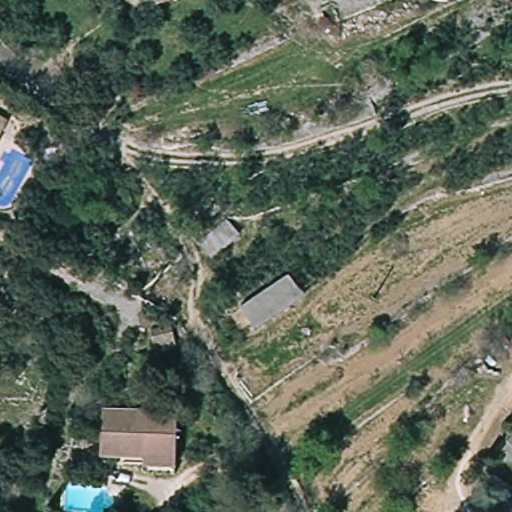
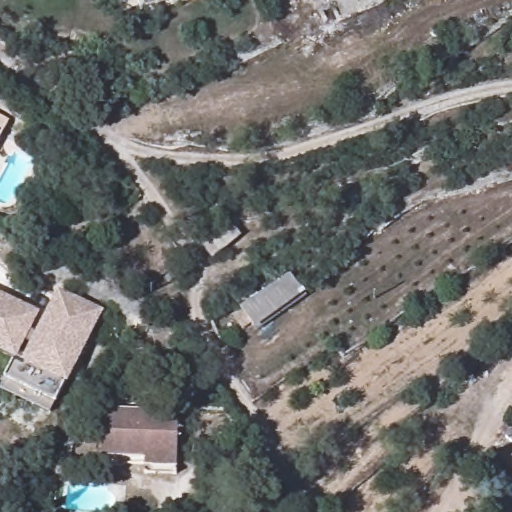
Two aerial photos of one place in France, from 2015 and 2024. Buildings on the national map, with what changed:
unchanged [(144,14),(140,0),(190,0),(144,14)]
unchanged [(9,121),(0,136),(0,117),(9,121)]
unchanged [(204,245),(232,221),(245,236),(217,260),(204,245)]
unchanged [(294,275),(304,292),(307,294),(259,328),(245,309),(294,275)]
new [(56,288),(102,310),(64,385),(54,401),(4,376),(14,360),(0,354),(0,294),(39,312),(30,331),(33,334),(56,288)]
unchanged [(101,407),(174,409),(173,468),(139,467),(140,456),(100,455),(101,407)]
unchanged [(502,437),(512,425),(512,446),(502,437)]
unchanged [(489,452),(502,437),(512,446),(512,471),(489,452)]

